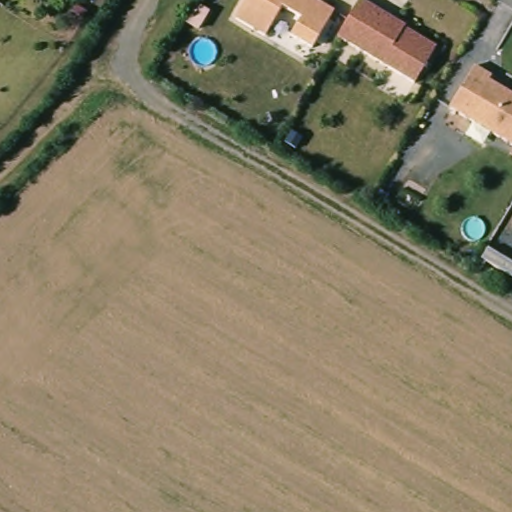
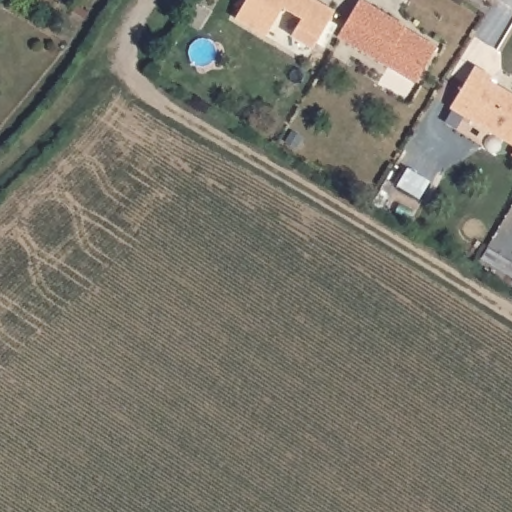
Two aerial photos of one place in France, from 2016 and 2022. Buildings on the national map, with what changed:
unchanged [(308,0),(332,13),(310,51),(288,38),(298,21),(279,10),(263,38),(232,21),(245,0),(308,0)]
unchanged [(402,29),(434,48),(431,53),(412,84),(334,38),(353,7),(357,0),(372,9),(403,27),(402,29)]
unchanged [(476,70),(488,77),(485,81),(512,97),(512,148),(451,111),(476,70)]

